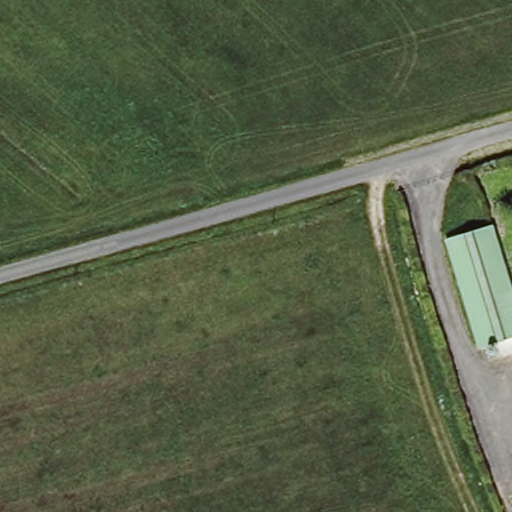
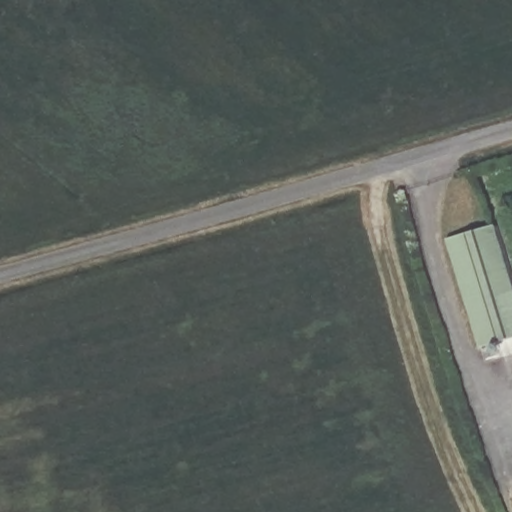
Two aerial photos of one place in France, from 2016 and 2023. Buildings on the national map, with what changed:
unchanged [(489,226),(512,295),(512,337),(482,348),(447,240),(489,226)]

